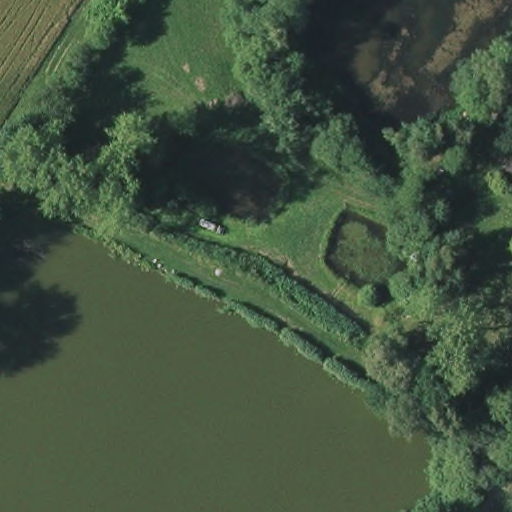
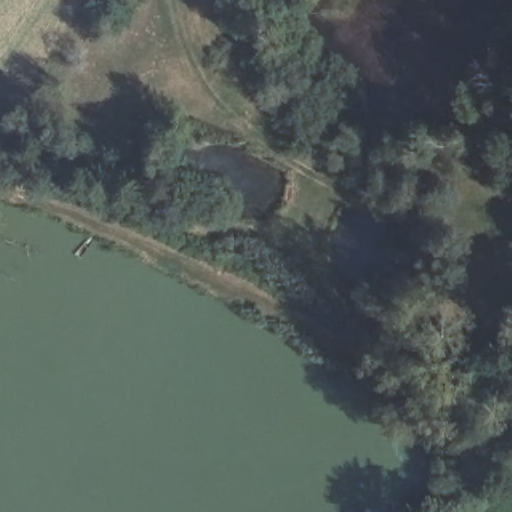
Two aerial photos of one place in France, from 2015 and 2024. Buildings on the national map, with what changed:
unchanged [(512,163),(512,171),(508,169),(512,163)]

